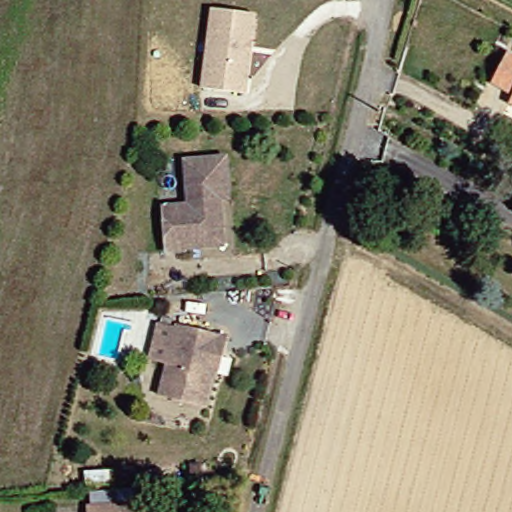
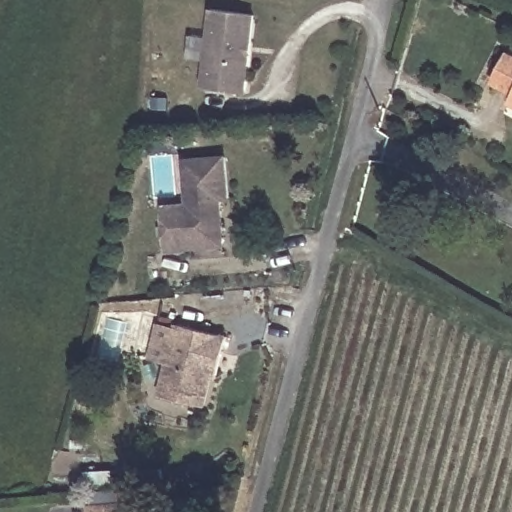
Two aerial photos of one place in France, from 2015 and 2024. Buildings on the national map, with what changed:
unchanged [(256,14),(248,95),(201,90),(209,8),(256,14)]
unchanged [(505,104),(510,96),(484,80),(501,51),(512,57),(512,109),(505,104)]
unchanged [(222,198),(212,198),(213,233),(200,247),(158,247),(157,205),(179,203),(176,159),(220,157),(222,198)]
unchanged [(222,334),(218,352),(208,351),(196,404),(152,393),(161,359),(143,354),(150,320),(168,326),(170,320),(222,334)]
unchanged [(131,512),(82,512),(82,497),(131,495),(131,512)]

